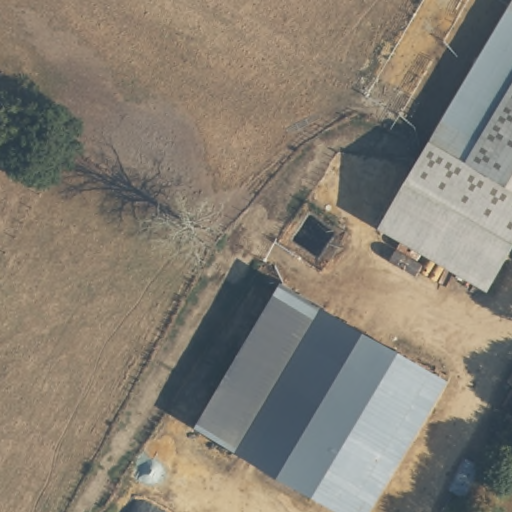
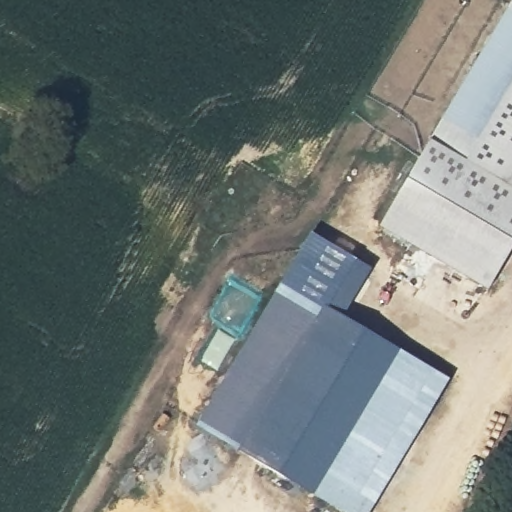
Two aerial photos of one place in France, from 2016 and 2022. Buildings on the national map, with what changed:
unchanged [(432,134),(511,0),(512,0),(512,99),(476,160),(432,134)]
unchanged [(476,160),(512,99),(512,182),(476,160)]
unchanged [(487,285),(380,221),(432,134),(476,160),(512,182),(512,243),(487,285)]
new [(370,268),(341,318),(281,282),(310,231),(370,268)]
unchanged [(197,425),(281,282),(395,350),(311,493),(197,425)]
unchanged [(395,350),(450,381),(371,512),(342,512),(311,493),(395,350)]

